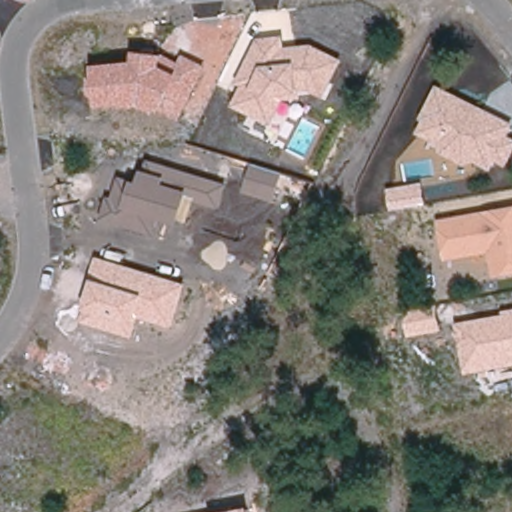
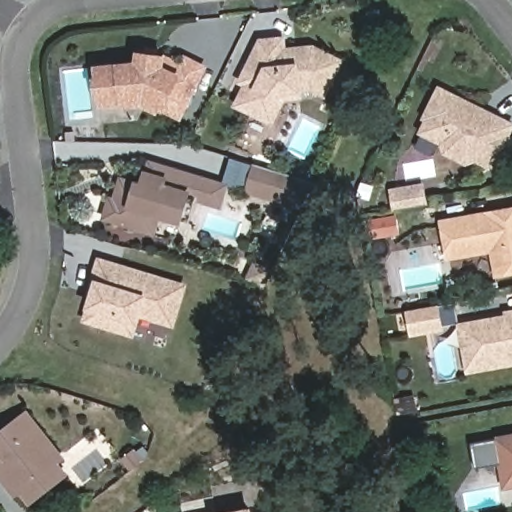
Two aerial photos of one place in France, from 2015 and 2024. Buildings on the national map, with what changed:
unchanged [(299,97),(283,100),(272,125),(232,106),(242,85),(237,82),(257,38),(285,35),(285,46),(312,44),(343,59),(324,97),(310,90),(299,91),(299,97)]
unchanged [(183,54),(206,66),(180,119),(163,111),(141,104),(99,108),(97,96),(94,96),(92,78),(95,78),(93,65),(132,61),(133,51),(164,53),(179,62),(183,54)]
unchanged [(476,162),(466,166),(441,153),(440,143),(417,134),(423,121),(420,119),(437,85),(512,123),(512,129),(509,134),(512,136),(512,156),(506,166),(495,160),(491,169),(476,162)]
unchanged [(226,183),(219,208),(196,202),(189,221),(182,218),(180,224),(162,220),(154,234),(100,219),(108,196),(112,197),(119,175),(133,180),(139,181),(143,170),(148,159),(226,183)]
unchanged [(274,201),(242,191),(251,163),(283,173),(274,201)]
new [(423,187),(426,204),(397,210),(394,192),(423,187)]
unchanged [(438,219),(512,206),(512,274),(493,277),(489,252),(445,260),(438,219)]
new [(401,217),(403,233),(371,239),(368,223),(401,217)]
unchanged [(187,284),(173,327),(139,317),(133,337),(81,322),(86,309),(94,279),(97,256),(187,284)]
unchanged [(408,337),(404,310),(439,304),(443,330),(408,337)]
unchanged [(456,323),(503,314),(502,311),(512,309),(512,365),(465,372),(456,323)]
new [(28,409),(67,458),(61,464),(69,474),(30,504),(21,493),(15,498),(0,479),(0,430),(28,409)]
new [(501,464),(478,467),(474,443),(497,440),(496,434),(512,432),(512,487),(504,488),(501,464)]
unchanged [(251,512),(221,512),(249,506),(251,512)]

